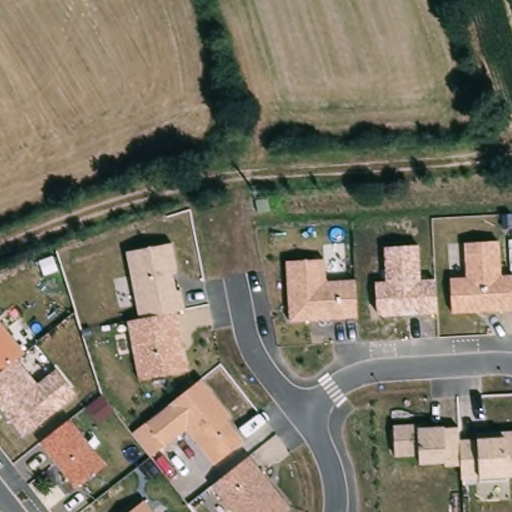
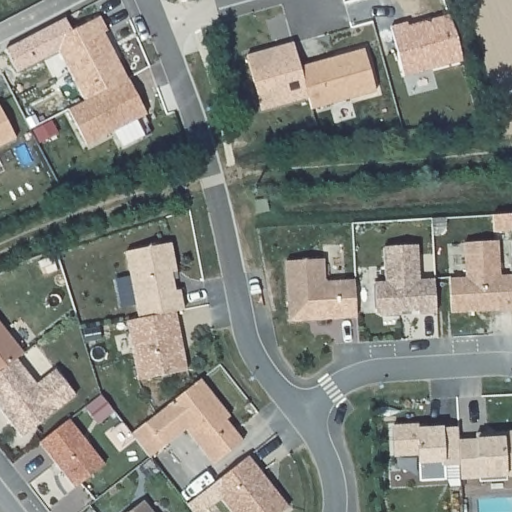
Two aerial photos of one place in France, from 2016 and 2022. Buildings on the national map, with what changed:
new [(391,24),(409,18),(410,23),(450,11),(463,60),(403,76),(391,24)]
new [(100,16),(149,114),(88,146),(68,107),(84,98),(54,39),(100,16)]
new [(299,65),(364,47),(377,91),(311,110),(307,97),(261,110),(247,54),(292,41),(299,65)]
new [(0,147),(0,102),(18,138),(0,147)]
unchanged [(450,276),(468,275),(466,240),(497,239),(498,273),(512,273),(512,308),(452,311),(450,276)]
unchanged [(137,378),(126,319),(141,315),(126,251),(173,242),(186,310),(178,312),(188,368),(137,378)]
unchanged [(375,282),(385,281),(384,247),(418,245),(420,280),(435,279),(436,312),(376,316),(375,282)]
unchanged [(286,259),(325,257),(325,280),(356,279),(358,315),(289,320),(286,259)]
unchanged [(0,318),(26,351),(18,357),(40,384),(57,368),(76,392),(23,435),(0,405),(0,318)]
unchanged [(186,428),(163,445),(150,455),(133,431),(148,420),(201,377),(231,415),(227,419),(244,440),(214,464),(186,428)]
unchanged [(41,442),(71,419),(106,463),(78,487),(41,442)]
unchanged [(395,424),(419,422),(420,426),(459,425),(460,440),(480,439),(478,432),(512,432),(512,476),(508,476),(480,477),(464,477),(462,466),(444,467),(443,461),(419,462),(418,455),(396,456),(395,424)]
unchanged [(250,456),(290,506),(283,512),(233,512),(212,484),(250,456)]
unchanged [(156,512),(130,512),(145,499),(156,512)]

